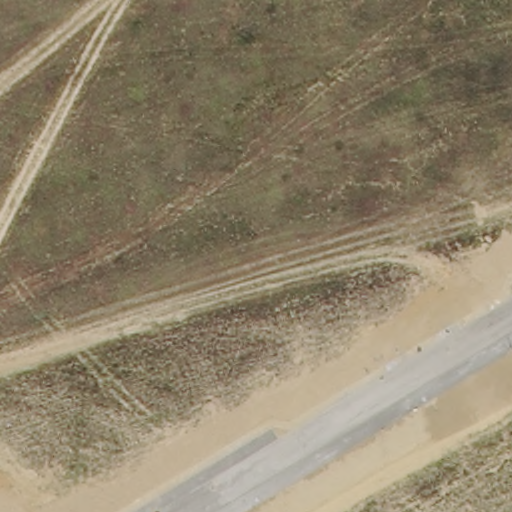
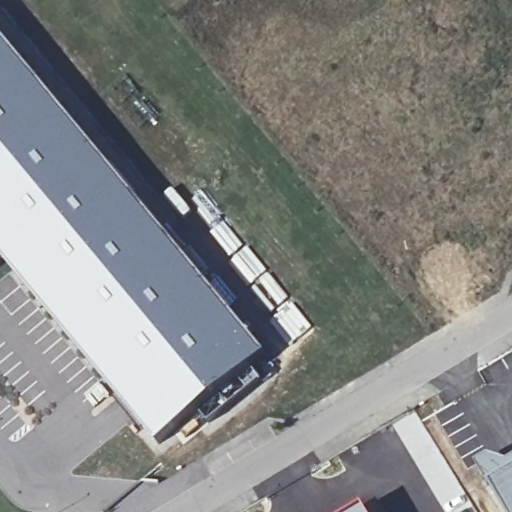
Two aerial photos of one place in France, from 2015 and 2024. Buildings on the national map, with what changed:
new [(269,353),(252,369),(222,396),(159,447),(2,258),(0,256),(0,31),(168,230),(269,353)]
new [(0,260),(0,256),(2,258),(0,260)]
new [(491,455),(509,460),(512,459),(512,512),(505,512),(476,464),(491,455)]
new [(365,505),(369,512),(353,512),(365,505)]

